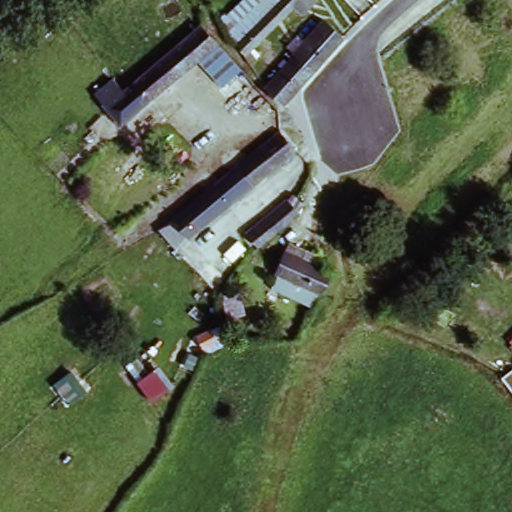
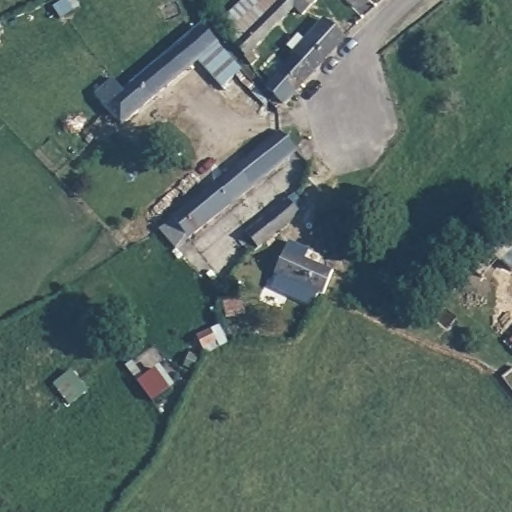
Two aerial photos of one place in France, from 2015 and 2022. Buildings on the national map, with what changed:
unchanged [(223,18),(242,0),(284,0),(240,44),(223,18)]
unchanged [(240,44),(284,0),(312,0),(316,4),(305,15),(297,7),(248,54),(240,44)]
unchanged [(98,96),(108,86),(118,97),(152,69),(153,67),(190,35),(202,25),(218,44),(240,68),(220,87),(196,63),(122,127),(95,99),(98,96)]
unchanged [(323,34),(337,48),(285,100),(270,86),(292,65),(285,59),(297,47),(303,53),(323,34)]
unchanged [(293,147),(176,244),(162,226),(193,201),(205,192),(210,187),(281,128),(293,147)]
unchanged [(283,202),(290,195),(298,203),(302,206),(296,214),(262,249),(250,236),(283,202)]
unchanged [(275,259),(285,239),(339,263),(340,264),(328,285),(325,290),(320,298),(272,275),(277,260),(275,259)]

